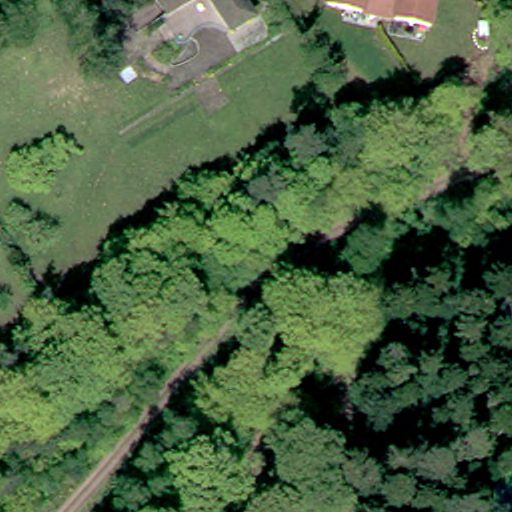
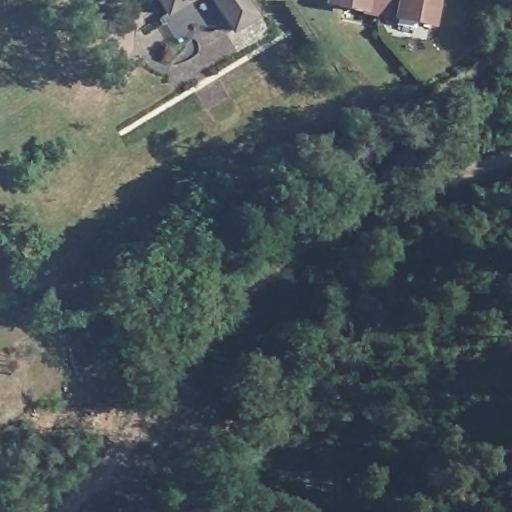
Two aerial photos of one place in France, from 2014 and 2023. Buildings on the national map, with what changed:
unchanged [(163,0),(196,0),(172,14),(163,0)]
unchanged [(181,41),(166,18),(172,14),(196,0),(216,0),(226,15),(231,24),(216,23),(208,22),(181,41)]
unchanged [(247,0),(259,19),(236,32),(231,24),(226,15),(216,0),(247,0)]
unchanged [(384,0),(381,11),(329,2),(330,0),(384,0)]
unchanged [(381,11),(384,0),(437,0),(433,21),(381,11)]

